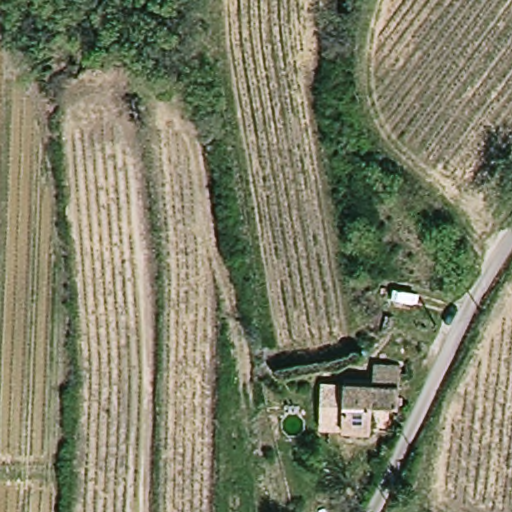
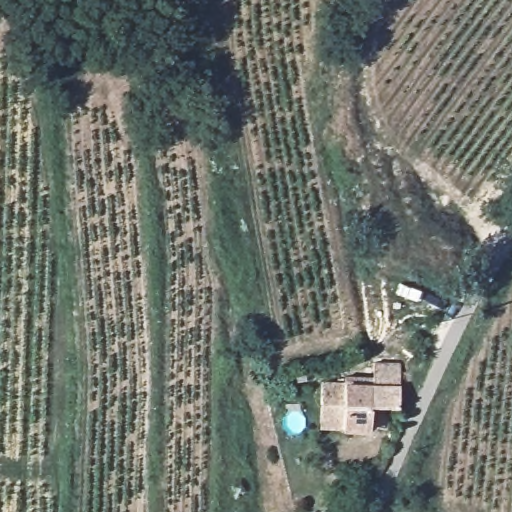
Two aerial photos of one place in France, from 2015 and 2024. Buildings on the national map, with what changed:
unchanged [(375,387),(377,365),(396,365),(401,366),(401,408),(374,407),(373,435),(345,435),(348,385),(375,387)]

